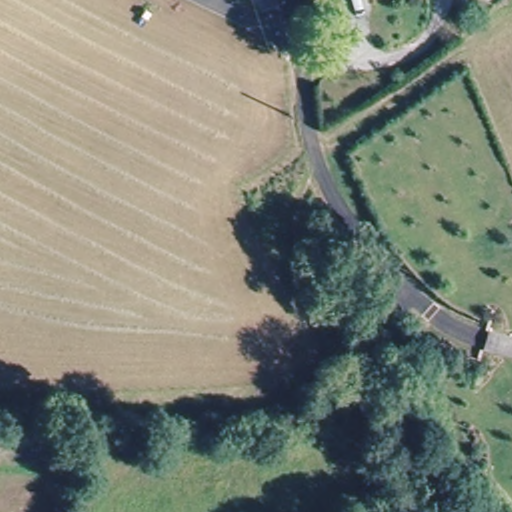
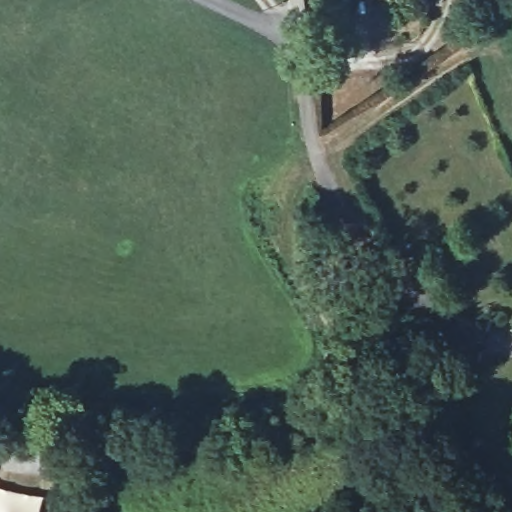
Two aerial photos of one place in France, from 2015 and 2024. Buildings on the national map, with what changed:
new [(45,493),(41,512),(0,512),(0,485),(45,493)]

